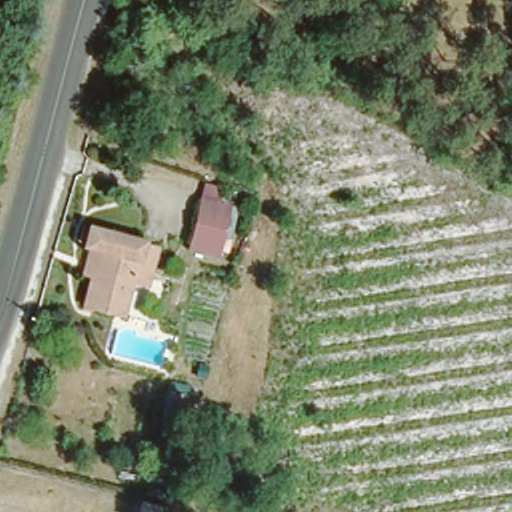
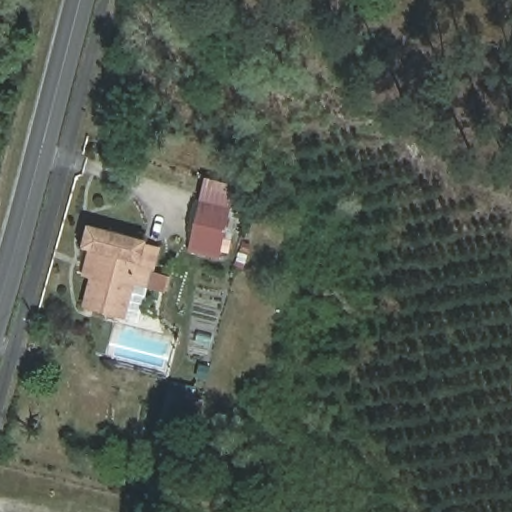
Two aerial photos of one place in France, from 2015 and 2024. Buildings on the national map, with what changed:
unchanged [(233,202),(231,209),(220,255),(192,248),(204,200),(205,196),(233,202)]
unchanged [(86,225),(141,240),(141,241),(156,246),(148,283),(134,279),(125,313),(84,301),(91,275),(81,272),(88,245),(81,243),(86,225)]
unchanged [(190,395),(180,435),(156,430),(169,388),(190,395)]
unchanged [(168,512),(137,512),(139,505),(168,511),(168,512)]

